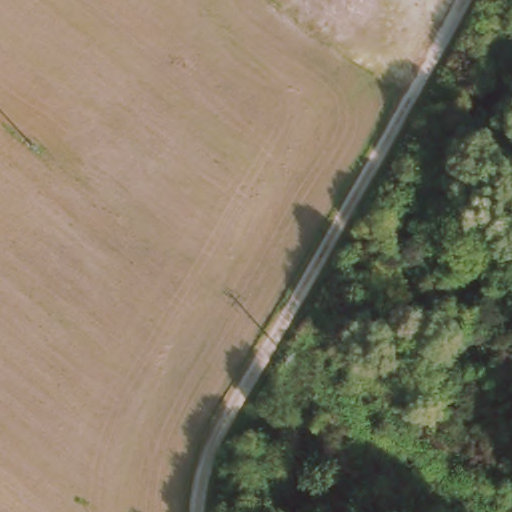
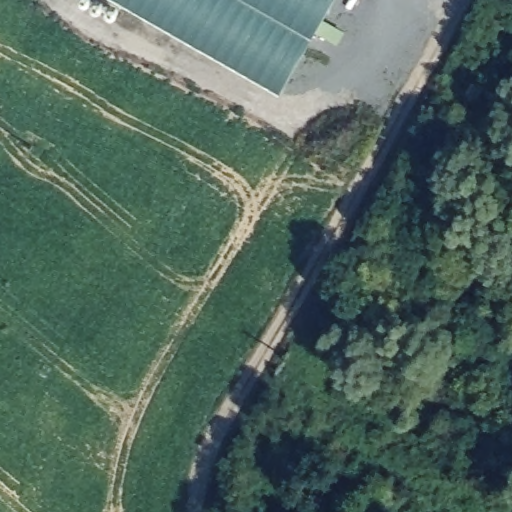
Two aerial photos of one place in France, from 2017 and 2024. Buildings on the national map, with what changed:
new [(119,0),(333,0),(323,17),(347,31),(339,45),(315,31),(280,92),(119,0)]

